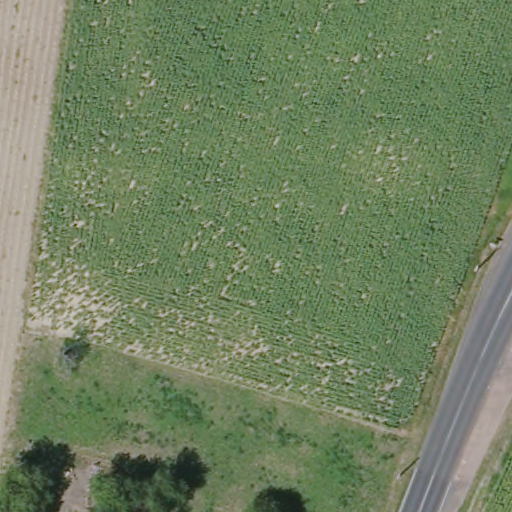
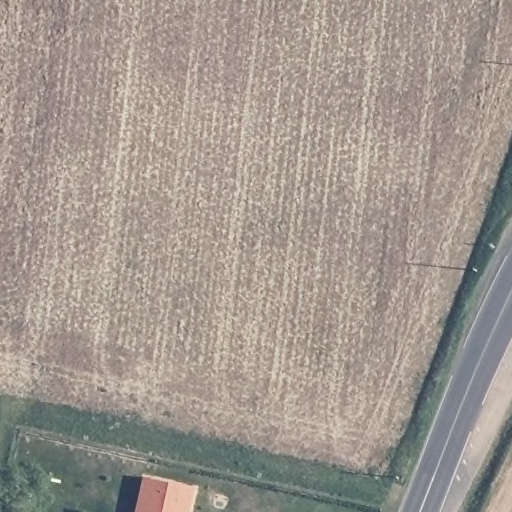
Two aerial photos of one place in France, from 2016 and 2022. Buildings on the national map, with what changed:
new [(146,477),(197,489),(191,512),(137,512),(146,477)]

